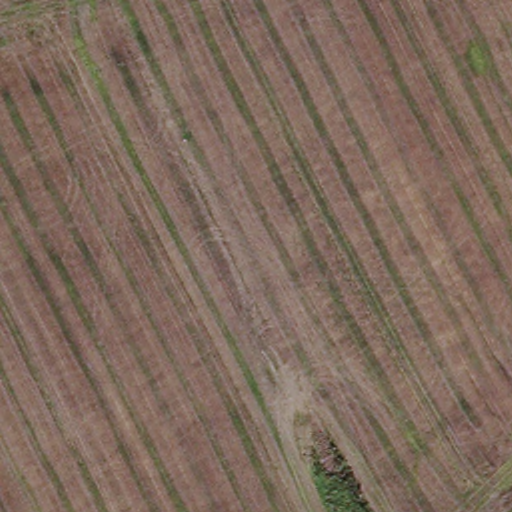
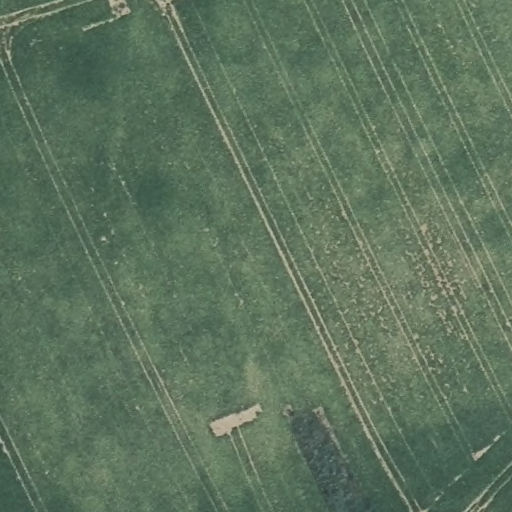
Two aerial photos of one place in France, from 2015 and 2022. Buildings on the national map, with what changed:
[]

